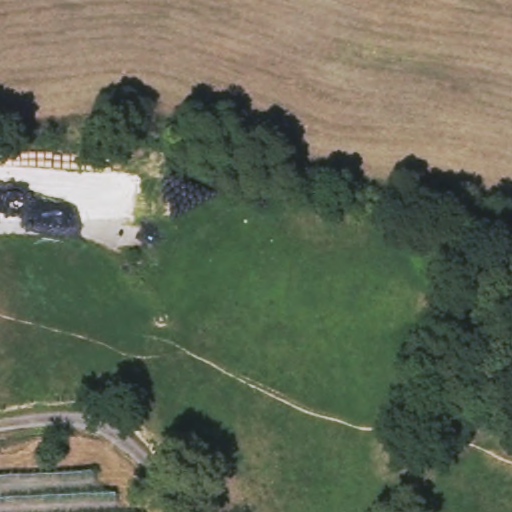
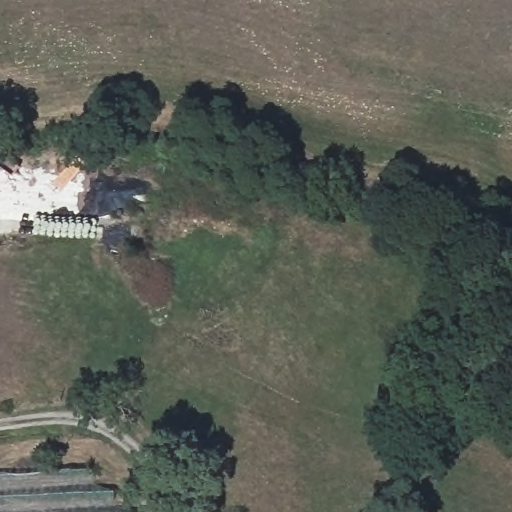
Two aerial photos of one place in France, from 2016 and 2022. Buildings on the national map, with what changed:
unchanged [(447,261),(441,275),(427,273),(431,257),(447,261)]

